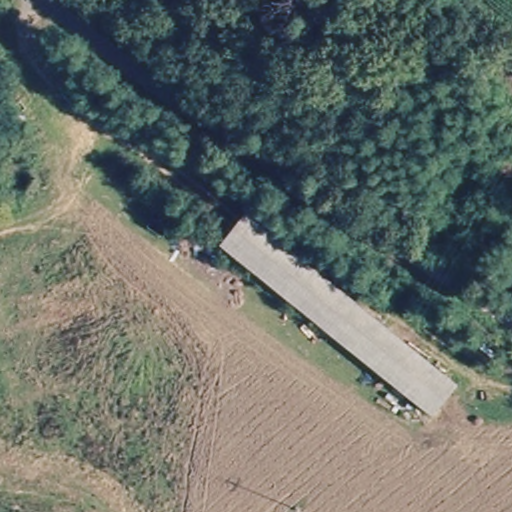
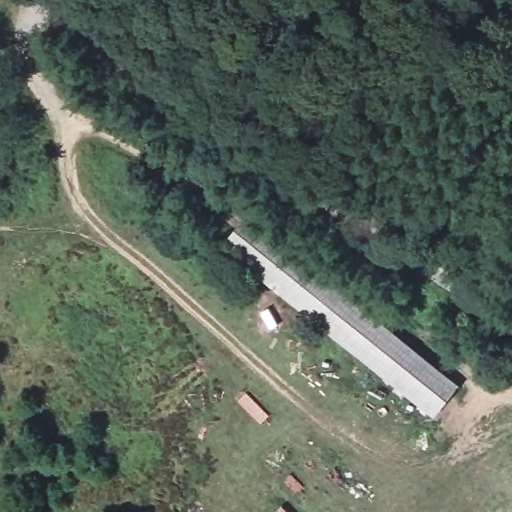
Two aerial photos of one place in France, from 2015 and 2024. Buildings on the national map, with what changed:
unchanged [(247,215),(462,385),(435,418),(223,244),(247,215)]

